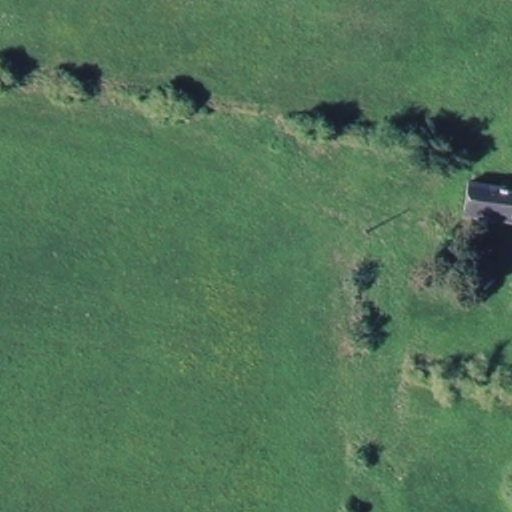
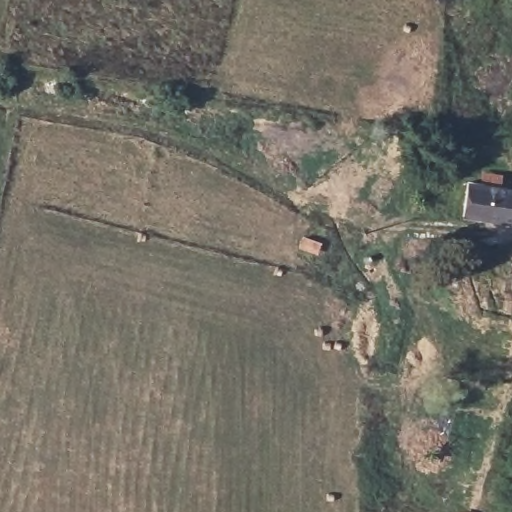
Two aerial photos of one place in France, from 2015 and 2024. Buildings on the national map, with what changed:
unchanged [(467,182),(512,189),(512,225),(462,217),(467,182)]

